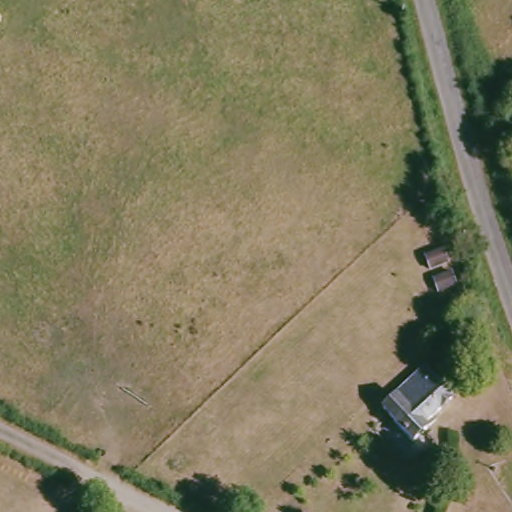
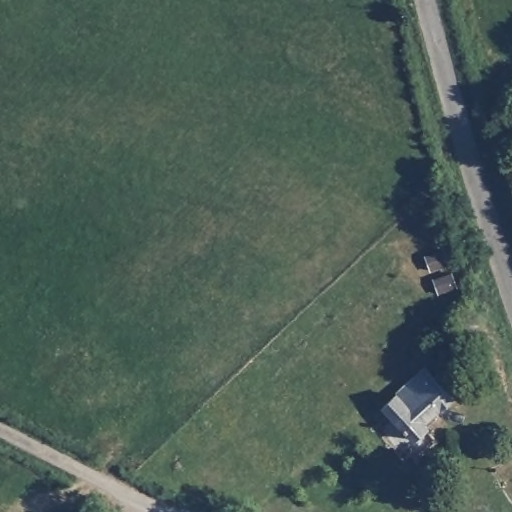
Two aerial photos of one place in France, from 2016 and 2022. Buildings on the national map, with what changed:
unchanged [(386,406),(430,368),(456,397),(428,423),(431,427),(417,440),(386,406)]

